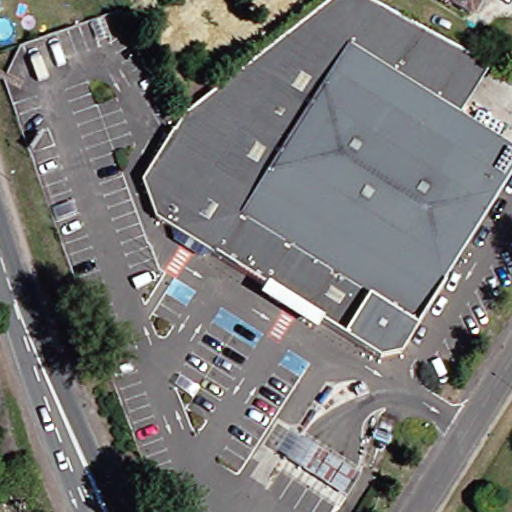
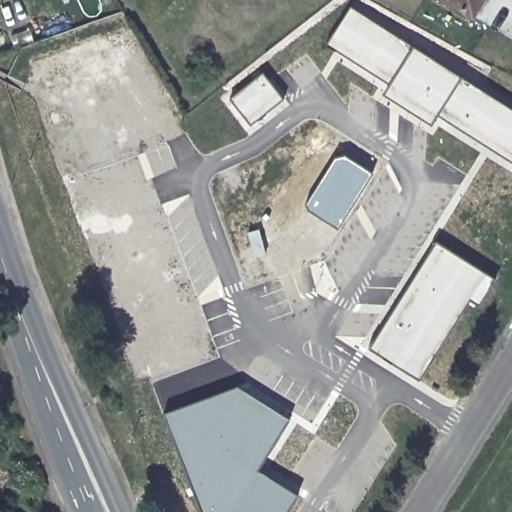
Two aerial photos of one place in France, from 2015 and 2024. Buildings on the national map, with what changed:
demolished [(455,114),(512,150),(512,166),(437,284),(440,287),(396,357),(372,361),(302,317),(271,297),(197,252),(167,233),(146,220),(141,205),(155,184),(141,175),(179,115),(181,117),(325,0),(367,0),(479,61),(448,110),(455,114)]
unchanged [(465,22),(428,0),(478,0),(465,22)]
new [(432,125),(384,95),(390,85),(327,44),(351,7),(512,109),(512,161),(438,115),(432,125)]
new [(251,126),(229,99),(262,72),(284,100),(251,126)]
new [(338,229),(308,210),(307,202),(335,157),(346,156),(373,173),(338,229)]
new [(480,304),(470,299),(420,380),(370,348),(437,242),(494,278),(480,304)]
new [(298,494),(287,512),(203,512),(164,412),(237,386),(290,418),(257,469),(298,494)]

